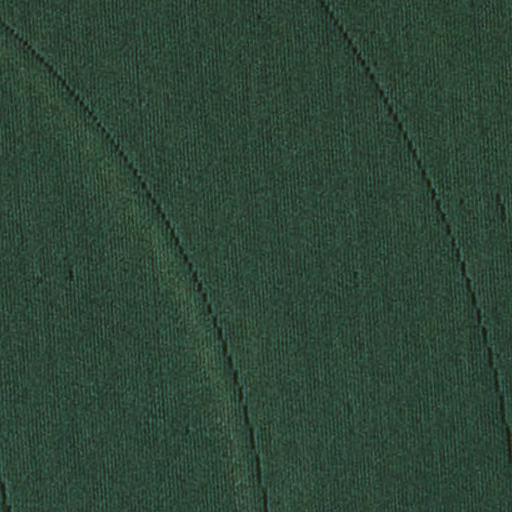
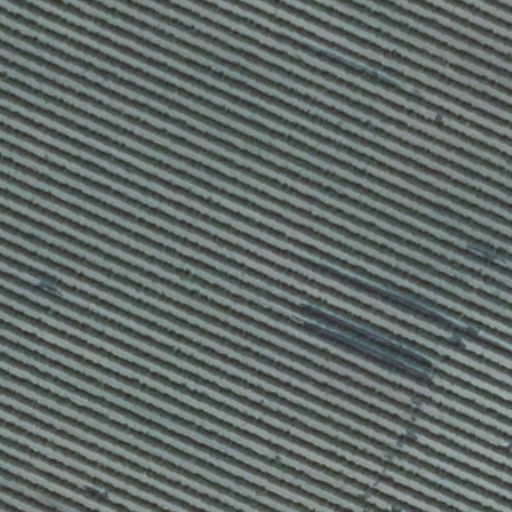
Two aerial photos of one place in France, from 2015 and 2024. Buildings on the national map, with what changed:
[]

